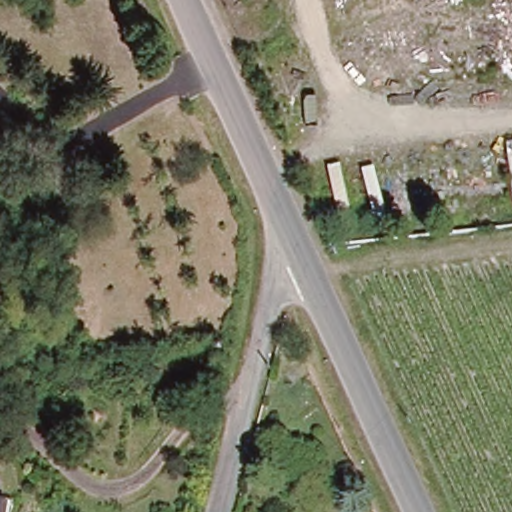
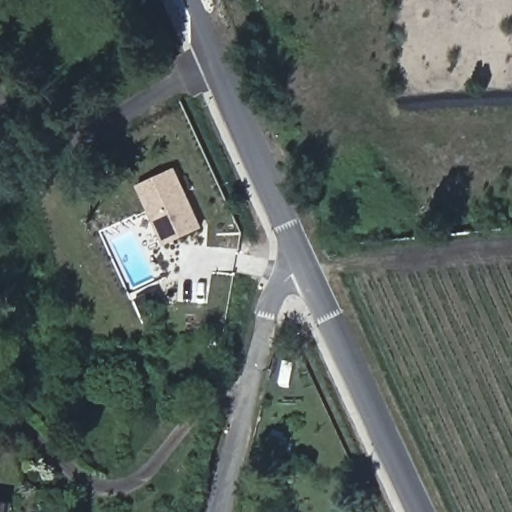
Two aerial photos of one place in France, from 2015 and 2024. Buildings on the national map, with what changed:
new [(166,245),(138,185),(177,166),(205,226),(166,245)]

